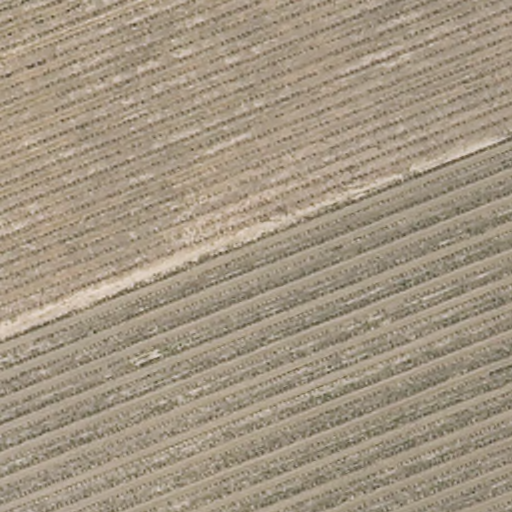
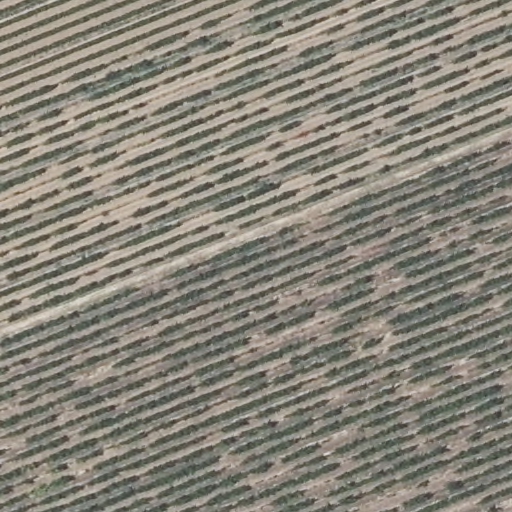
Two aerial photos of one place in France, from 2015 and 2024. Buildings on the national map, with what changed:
[]

